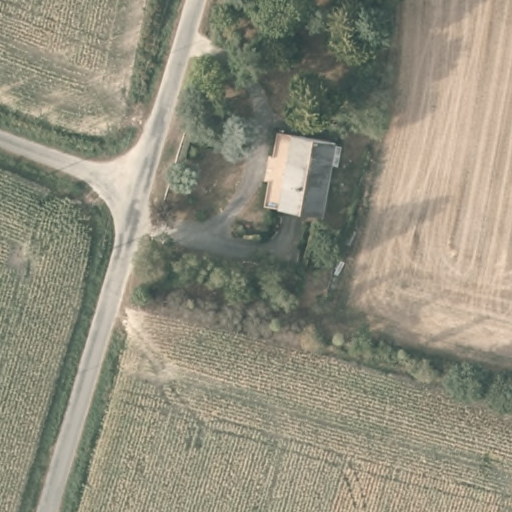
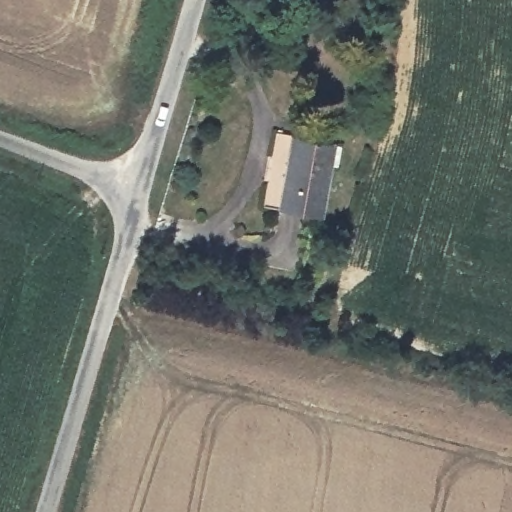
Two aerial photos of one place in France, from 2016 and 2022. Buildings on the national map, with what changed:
unchanged [(323,219),(278,208),(294,134),(339,144),(323,219)]

